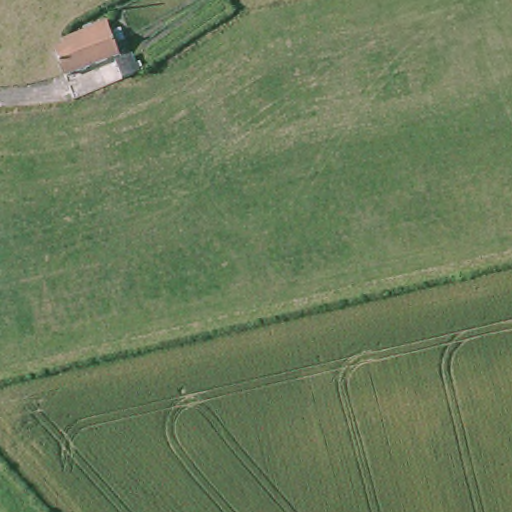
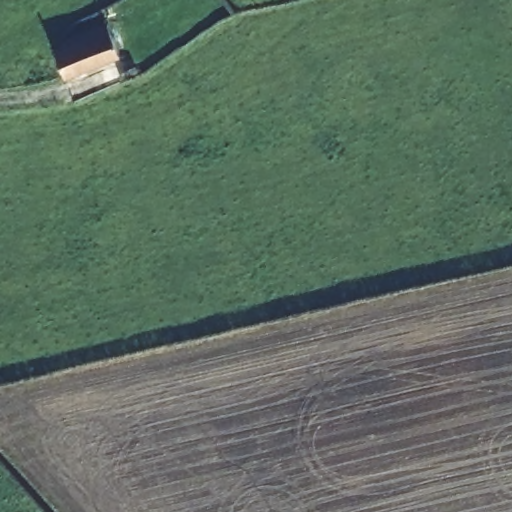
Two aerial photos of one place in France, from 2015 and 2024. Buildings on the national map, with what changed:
unchanged [(101,17),(103,24),(115,21),(120,43),(110,46),(112,52),(57,65),(55,61),(49,39),(60,35),(57,26),(101,17)]
unchanged [(110,58),(121,55),(126,69),(115,72),(110,58)]

